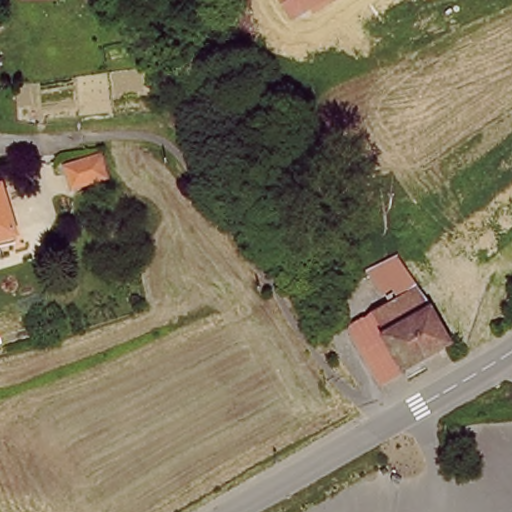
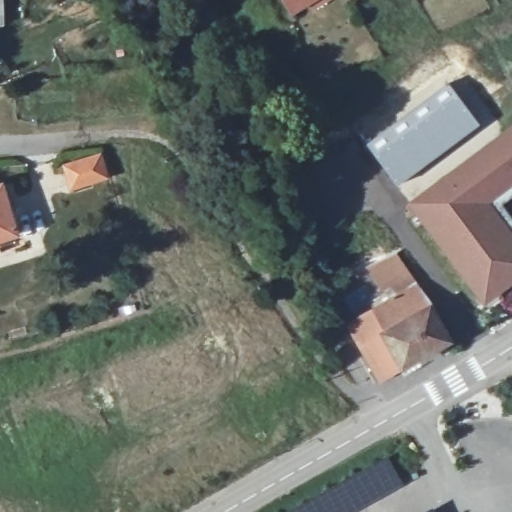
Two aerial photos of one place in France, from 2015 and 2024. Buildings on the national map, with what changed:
unchanged [(315,11),(311,6),(290,17),(281,0),(333,0),(315,11)]
new [(447,83),(480,126),(398,187),(365,144),(447,83)]
new [(512,133),(512,199),(505,204),(512,215),(512,285),(487,305),(414,205),(512,133)]
unchanged [(106,156),(114,180),(74,190),(69,165),(106,156)]
demolished [(487,251),(480,259),(470,242),(473,238),(463,225),(467,222),(461,211),(512,169),(512,235),(490,253),(487,251)]
unchanged [(5,183),(20,235),(0,240),(5,255),(0,256),(0,185),(5,183)]
new [(395,298),(390,287),(380,291),(366,270),(395,256),(414,286),(395,298)]
unchanged [(395,298),(414,286),(427,309),(450,351),(406,374),(386,384),(354,322),(395,298)]

